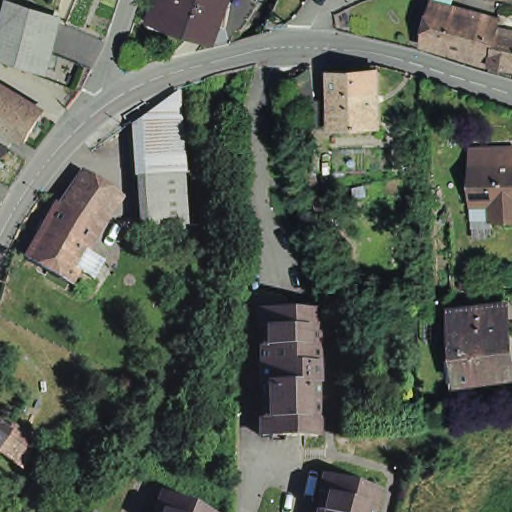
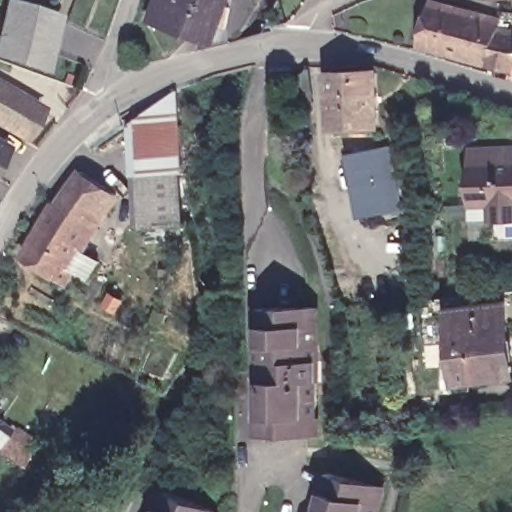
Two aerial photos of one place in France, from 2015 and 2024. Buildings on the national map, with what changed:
unchanged [(235,0),(221,39),(181,24),(164,17),(166,11),(170,0),(235,0)]
unchanged [(33,8),(49,14),(57,16),(51,43),(43,69),(0,55),(0,38),(10,1),(33,8)]
unchanged [(412,50),(425,5),(482,21),(493,25),(492,31),(512,36),(512,76),(482,70),(412,50)]
unchanged [(323,73),(368,71),(370,126),(325,128),(323,73)]
unchanged [(40,114),(24,141),(0,127),(0,91),(40,114)]
unchanged [(134,182),(130,124),(160,101),(162,100),(166,96),(167,103),(174,179),(134,182)]
new [(348,155),(393,145),(404,209),(361,218),(348,155)]
unchanged [(6,153),(0,163),(0,149),(6,153)]
unchanged [(465,156),(509,156),(509,171),(512,171),(512,227),(485,227),(485,210),(471,211),(466,211),(466,174),(465,156)]
unchanged [(79,175),(115,200),(93,229),(56,208),(79,175)]
unchanged [(178,228),(138,231),(134,182),(174,179),(178,228)]
unchanged [(92,281),(70,269),(62,284),(23,262),(54,207),(56,208),(93,229),(79,253),(100,266),(92,281)]
unchanged [(457,316),(508,310),(512,348),(512,379),(465,385),(457,316)]
unchanged [(318,311),(319,439),(263,440),(262,420),(266,420),(266,386),(262,386),(262,348),(266,348),(266,332),(262,332),(262,312),(318,311)]
unchanged [(4,434),(8,429),(34,447),(17,471),(0,460),(0,431),(4,434)]
unchanged [(374,491),(369,512),(315,512),(318,497),(315,496),(319,477),(374,491)]
unchanged [(158,493),(207,512),(150,512),(158,493)]
unchanged [(95,509),(101,512),(93,512),(95,509)]

